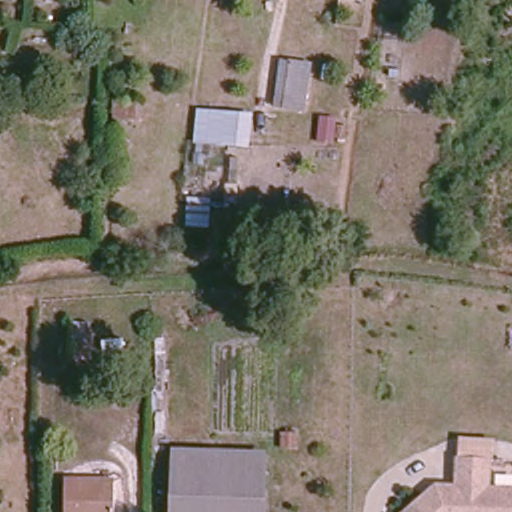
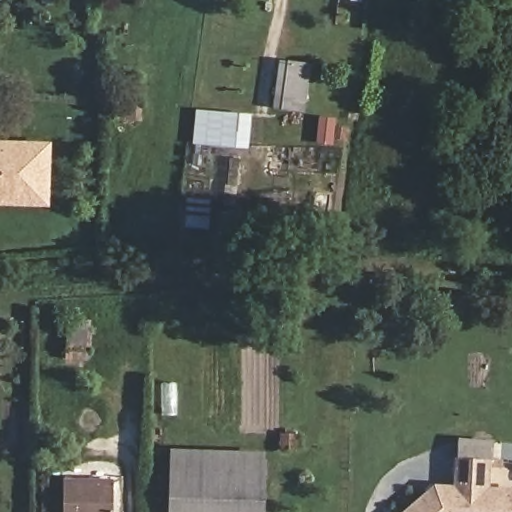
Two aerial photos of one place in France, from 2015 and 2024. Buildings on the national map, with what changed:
unchanged [(310,105),(286,102),(275,101),(279,67),(291,69),(313,72),(310,105)]
unchanged [(116,119),(115,99),(147,102),(144,120),(116,119)]
unchanged [(195,142),(197,109),(252,115),(250,146),(195,142)]
new [(52,141),(50,206),(0,205),(0,140),(52,141)]
unchanged [(187,226),(188,197),(211,199),(211,229),(187,226)]
unchanged [(68,358),(70,322),(91,323),(86,360),(68,358)]
unchanged [(283,450),(282,433),(299,433),(301,451),(283,450)]
unchanged [(455,487),(458,457),(488,458),(485,488),(511,490),(512,490),(512,512),(398,512),(434,485),(455,487)]
unchanged [(193,512),(172,511),(174,458),(267,462),(265,512),(193,512)]
unchanged [(117,477),(117,512),(68,512),(69,479),(117,477)]

